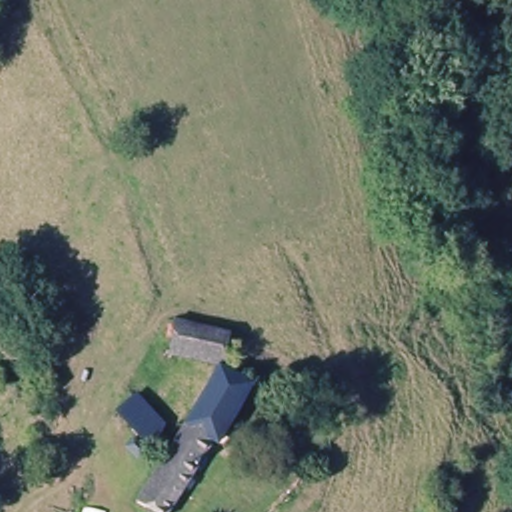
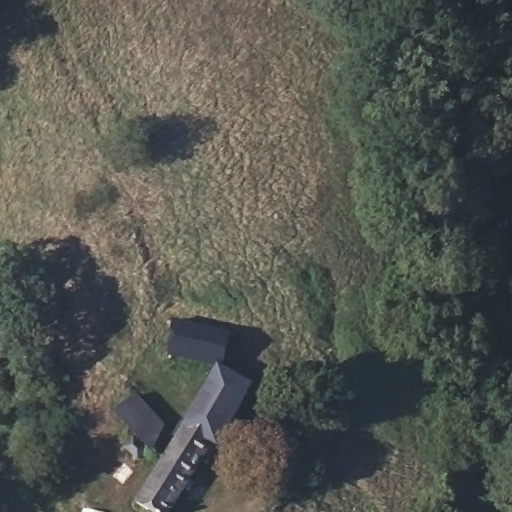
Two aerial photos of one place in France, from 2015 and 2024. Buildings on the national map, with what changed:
unchanged [(169,322),(228,335),(223,368),(170,353),(169,322)]
unchanged [(218,447),(212,446),(171,512),(149,512),(137,504),(176,442),(179,443),(222,373),(252,388),(218,447)]
unchanged [(136,398),(148,413),(160,403),(171,416),(156,450),(121,412),(136,398)]
unchanged [(148,451),(141,459),(131,448),(138,440),(148,451)]

